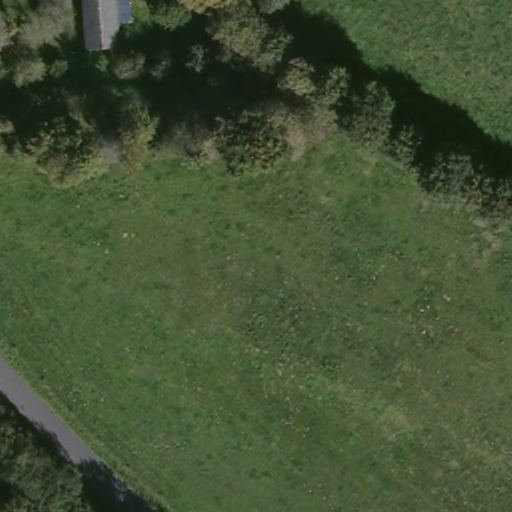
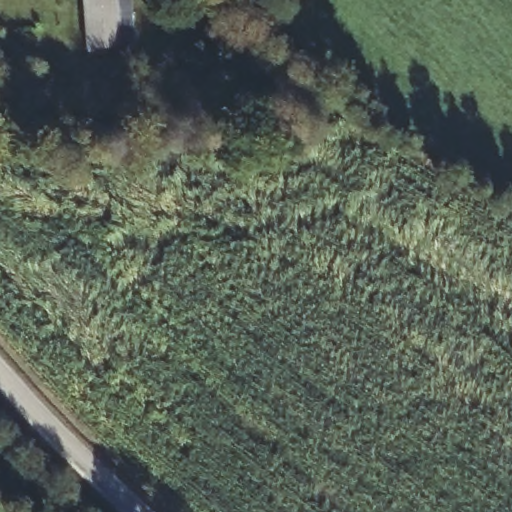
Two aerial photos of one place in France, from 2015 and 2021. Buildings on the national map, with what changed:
unchanged [(89,50),(85,0),(120,0),(123,48),(89,50)]

